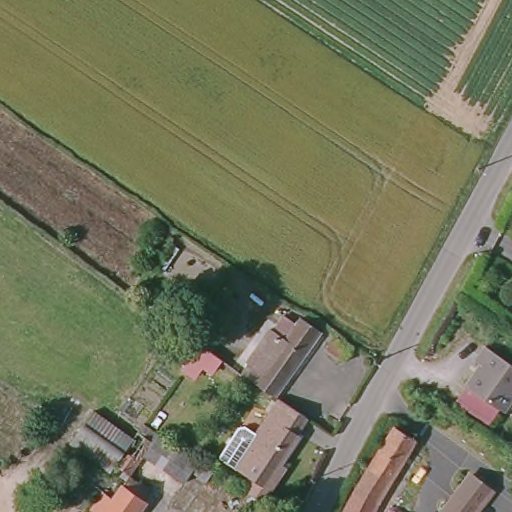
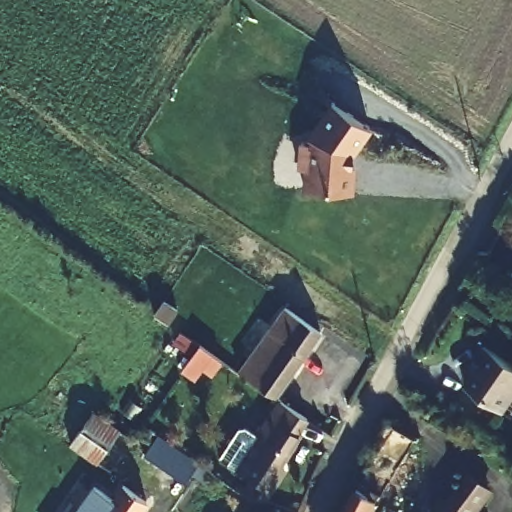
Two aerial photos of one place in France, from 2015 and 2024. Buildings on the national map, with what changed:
new [(370,128),(352,152),(352,166),(353,166),(352,193),(305,190),(306,169),(298,168),(300,142),(308,142),(308,137),(332,103),(370,128)]
unchanged [(178,250),(163,272),(155,266),(170,244),(178,250)]
unchanged [(243,364),(240,362),(265,329),(267,331),(278,316),(290,325),(295,318),(315,332),(271,397),(237,373),(243,364)]
unchanged [(342,362),(325,351),(334,337),(352,348),(342,362)]
unchanged [(465,387),(479,366),(473,362),(483,347),(512,366),(512,398),(502,412),(465,387)]
unchanged [(276,473),(258,500),(237,493),(246,479),(230,468),(275,400),(302,418),(292,435),(294,437),(275,465),(280,467),(276,473)]
unchanged [(127,440),(137,425),(193,463),(208,473),(202,482),(187,472),(179,483),(138,455),(123,477),(147,492),(133,512),(84,512),(97,493),(106,500),(120,481),(114,477),(117,472),(109,467),(104,473),(63,445),(87,412),(127,440)]
unchanged [(387,429),(410,441),(369,512),(340,512),(387,429)]
unchanged [(487,493),(475,512),(444,512),(467,480),(487,493)]

